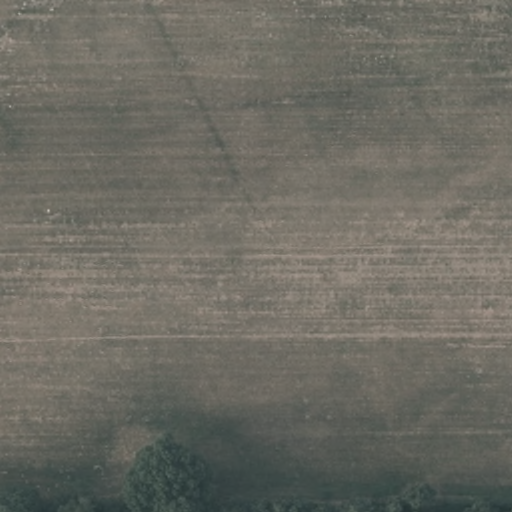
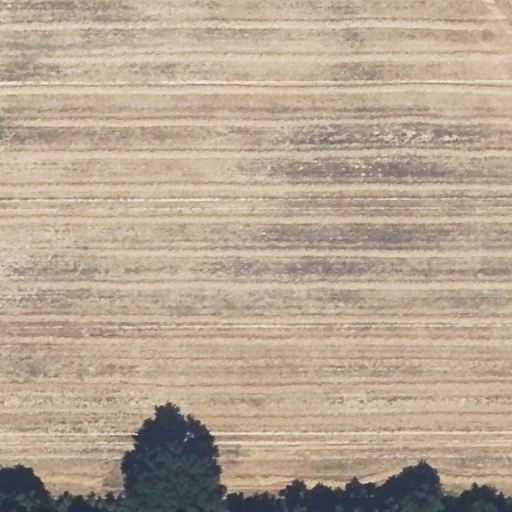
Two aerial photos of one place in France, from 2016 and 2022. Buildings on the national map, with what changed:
[]

